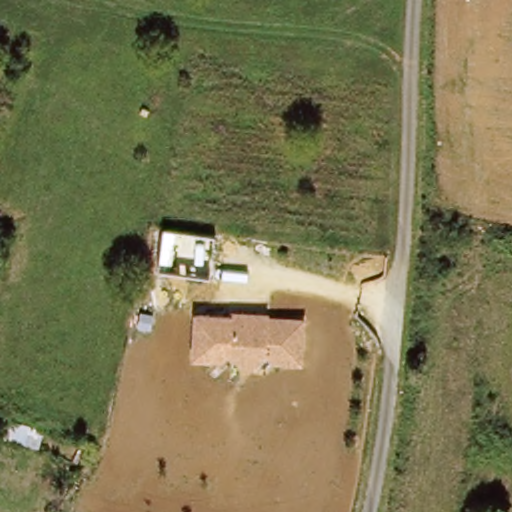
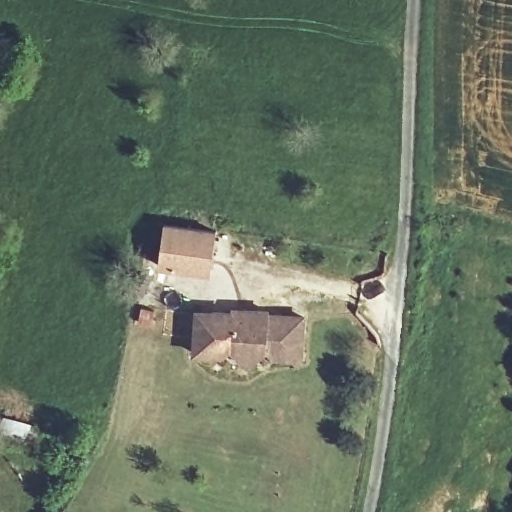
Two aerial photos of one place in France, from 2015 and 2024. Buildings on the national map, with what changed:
new [(210,273),(158,267),(163,223),(216,229),(210,273)]
unchanged [(235,344),(225,351),(199,350),(199,325),(200,308),(215,308),(235,309),(235,305),(272,306),(273,310),(306,311),(305,354),(278,354),(270,345),(256,360),(248,361),(235,344)]

